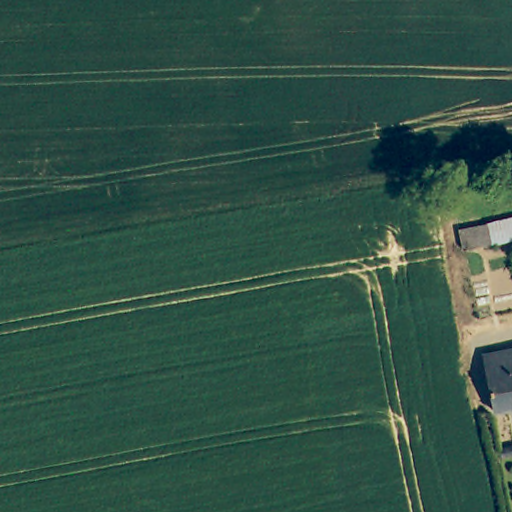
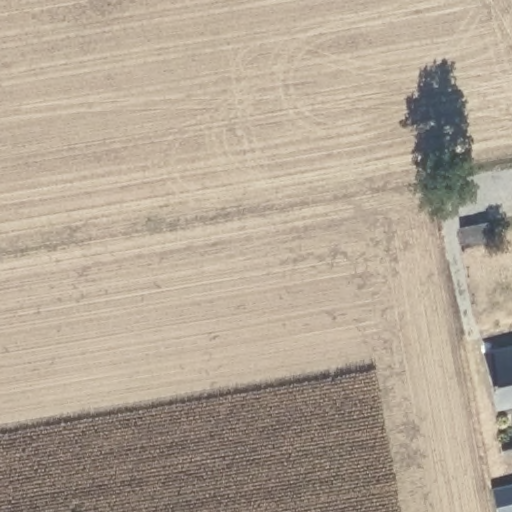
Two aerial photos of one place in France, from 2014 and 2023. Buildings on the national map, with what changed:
unchanged [(460,230),(512,217),(512,244),(467,255),(460,230)]
unchanged [(486,357),(512,351),(512,412),(497,415),(486,357)]

